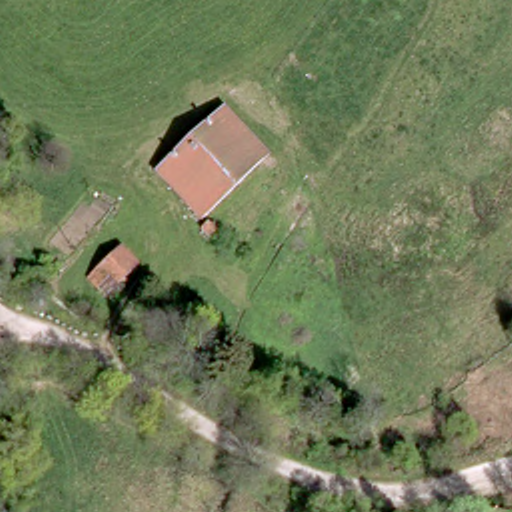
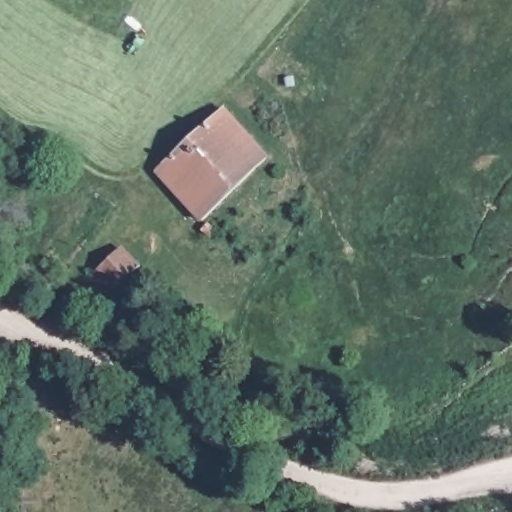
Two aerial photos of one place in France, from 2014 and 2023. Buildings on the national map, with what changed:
unchanged [(156,167),(176,146),(221,101),(223,103),(255,137),(267,151),(228,189),(205,212),(218,220),(213,228),(200,219),(203,214),(156,167)]
unchanged [(129,246),(145,264),(123,285),(125,288),(118,294),(106,281),(103,283),(97,274),(129,246)]

